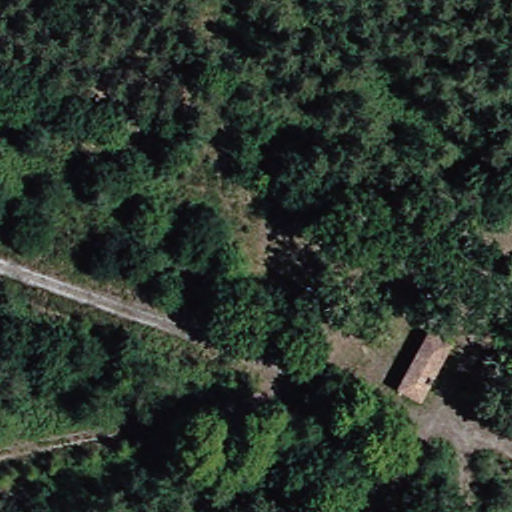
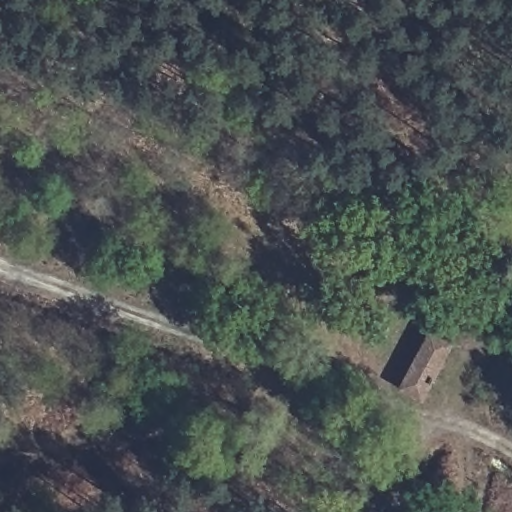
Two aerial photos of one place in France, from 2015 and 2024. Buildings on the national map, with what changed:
unchanged [(455,340),(432,396),(412,382),(431,330),(455,340)]

